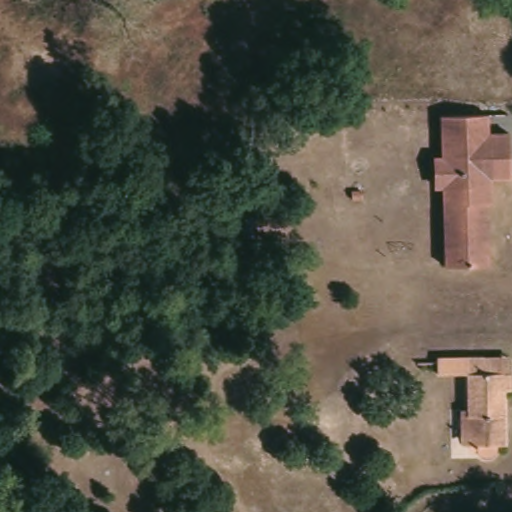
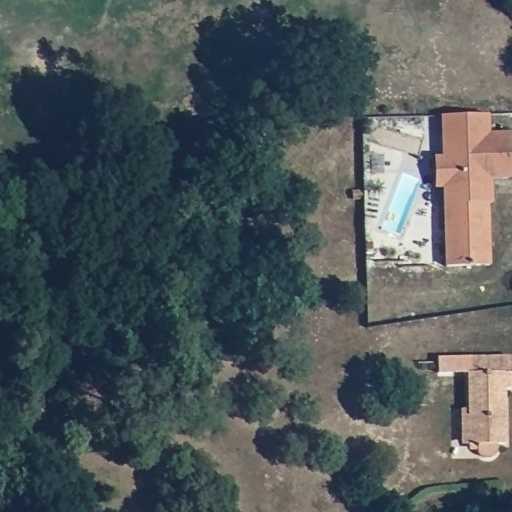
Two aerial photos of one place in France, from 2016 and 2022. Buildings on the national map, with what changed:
unchanged [(463,272),(449,194),(442,195),(437,165),(443,164),(436,124),(483,116),(486,135),(506,131),(512,167),(512,176),(494,179),(508,265),(463,272)]
unchanged [(509,355),(509,371),(510,391),(501,392),(503,445),(494,445),(494,456),(490,462),(482,462),(476,455),(474,447),(470,447),(466,357),(485,357),(509,355)]

